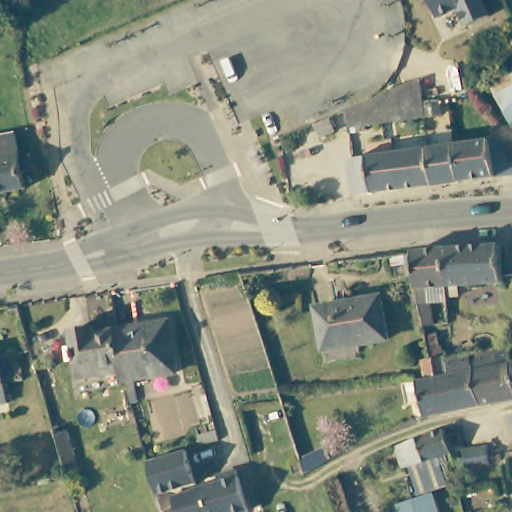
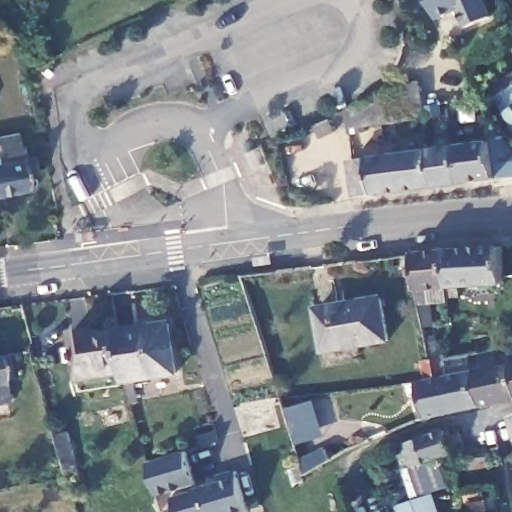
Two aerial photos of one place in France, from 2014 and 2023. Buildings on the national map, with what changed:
unchanged [(466,24),(458,7),(440,15),(433,0),(482,0),(488,15),(466,24)]
unchanged [(511,70),(512,72),(512,130),(482,90),(511,70)]
unchanged [(345,125),(343,106),(363,97),(391,85),(415,74),(420,101),(421,111),(396,116),(345,125)]
unchanged [(454,141),(504,135),(512,149),(512,172),(469,176),(459,177),(454,143),(454,141)]
unchanged [(35,159),(37,174),(25,176),(28,191),(0,197),(0,140),(16,136),(18,145),(22,161),(35,159)]
unchanged [(406,185),(402,149),(429,145),(429,146),(454,143),(459,177),(406,185)]
unchanged [(357,192),(352,155),(402,149),(406,185),(357,192)]
unchanged [(499,242),(502,280),(447,282),(444,246),(499,242)]
unchanged [(415,249),(419,249),(444,246),(447,282),(449,297),(433,300),(437,321),(426,323),(419,290),(418,283),(415,249)]
unchanged [(332,306),(332,303),(349,300),(350,304),(381,298),(390,340),(323,351),(316,310),(332,306)]
unchanged [(169,323),(178,375),(137,380),(125,382),(124,380),(123,373),(116,331),(169,323)]
unchanged [(71,333),(95,329),(96,335),(116,331),(123,373),(119,373),(78,380),(71,333)]
unchanged [(506,354),(509,364),(512,379),(512,401),(482,407),(472,360),(506,354)]
unchanged [(424,380),(421,362),(433,360),(446,358),(447,365),(449,376),(455,375),(453,363),(454,363),(472,360),(482,407),(427,419),(425,420),(416,382),(419,381),(424,380)]
unchanged [(4,382),(0,383),(0,360),(4,382)]
unchanged [(512,363),(512,379),(509,364),(512,363)]
new [(324,435),(297,445),(286,408),(313,399),(324,435)]
unchanged [(512,417),(512,428),(509,418),(512,417)]
unchanged [(66,430),(67,435),(70,435),(81,470),(66,475),(54,433),(66,430)]
unchanged [(446,435),(458,431),(463,448),(487,445),(489,453),(491,464),(466,467),(464,458),(453,461),(450,453),(403,469),(395,445),(444,430),(446,435)]
unchanged [(153,494),(145,463),(185,452),(193,483),(153,494)]
unchanged [(243,512),(175,512),(171,495),(219,481),(216,476),(236,471),(248,511),(243,512)]
unchanged [(386,511),(438,492),(442,512),(386,512),(386,511)]

